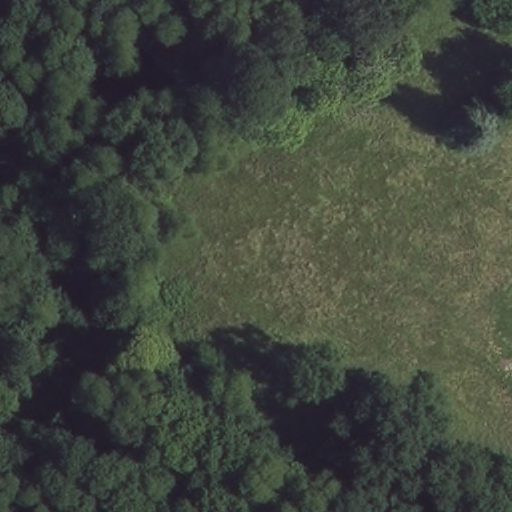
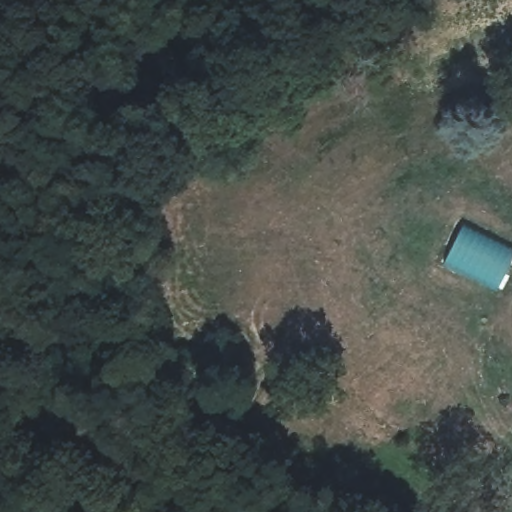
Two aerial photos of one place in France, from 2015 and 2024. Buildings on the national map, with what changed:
new [(444,263),(463,224),(512,247),(512,260),(499,288),(444,263)]

